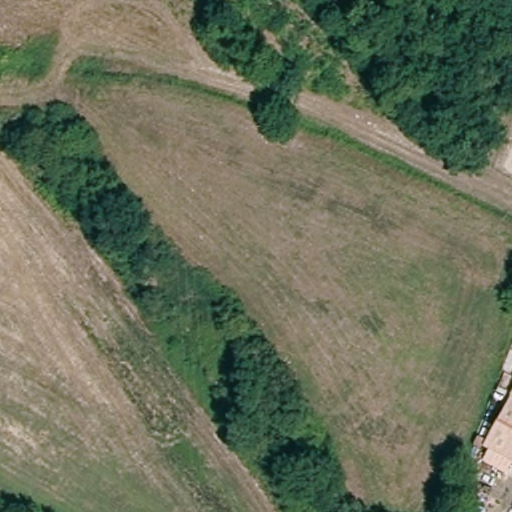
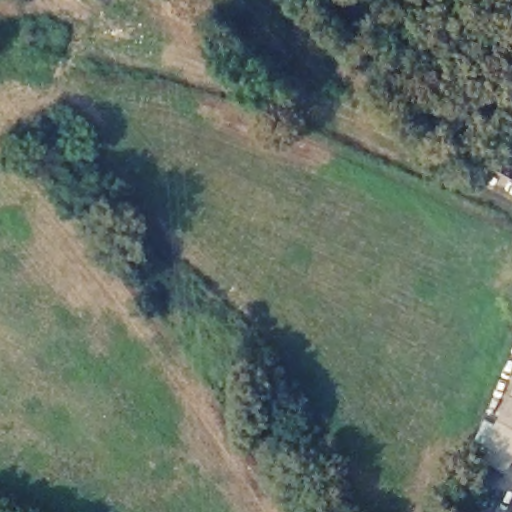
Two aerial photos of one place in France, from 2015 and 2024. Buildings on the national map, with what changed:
unchanged [(512,396),(512,466),(483,450),(512,396)]

